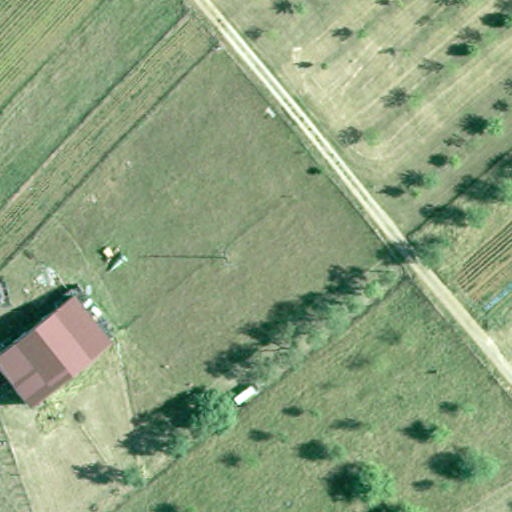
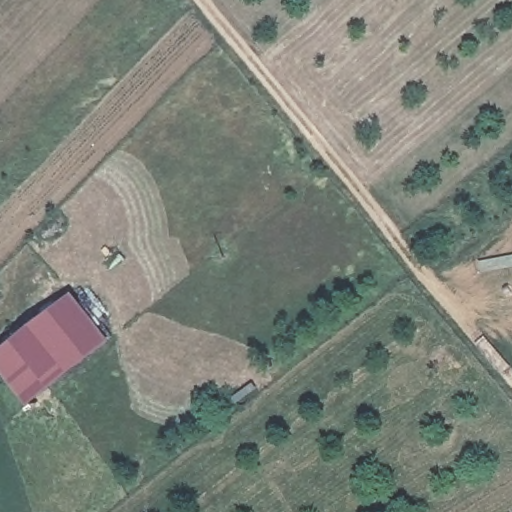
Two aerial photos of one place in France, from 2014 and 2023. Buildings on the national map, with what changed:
unchanged [(0,364),(0,361),(78,302),(108,341),(115,351),(35,411),(29,402),(0,364)]

